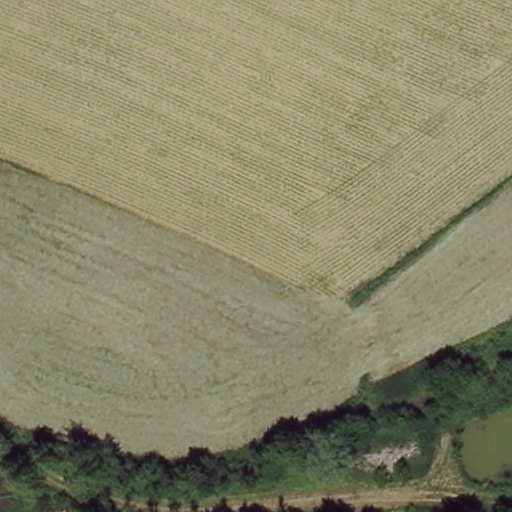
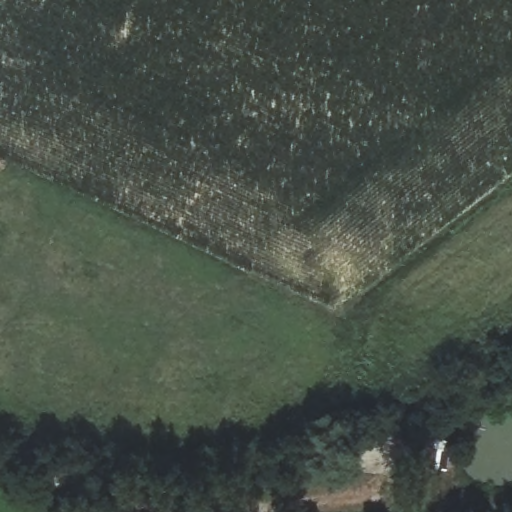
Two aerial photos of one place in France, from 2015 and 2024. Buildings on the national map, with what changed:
unchanged [(407,512),(386,512),(387,501),(407,504),(407,512)]

